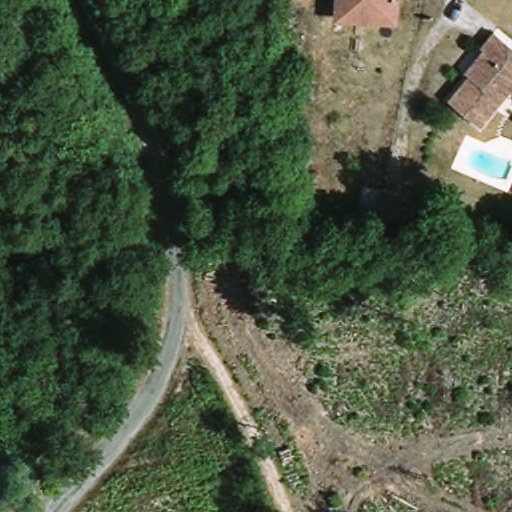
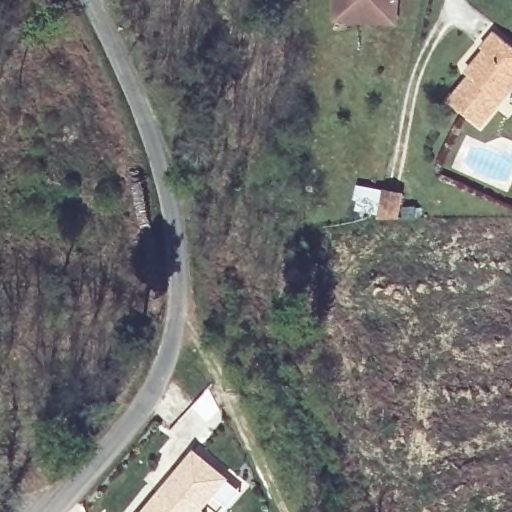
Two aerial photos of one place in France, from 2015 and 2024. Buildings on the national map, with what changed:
unchanged [(362,22),(336,20),(338,0),(396,0),(395,8),(395,24),(362,22)]
unchanged [(462,100),(486,68),(485,61),(495,49),(492,46),(505,30),(512,37),(512,100),(493,125),(462,100)]
unchanged [(382,219),(363,214),(368,188),(388,193),(387,194),(406,198),(401,222),(382,222),(382,219)]
new [(199,512),(140,512),(192,449),(228,478),(199,512)]

